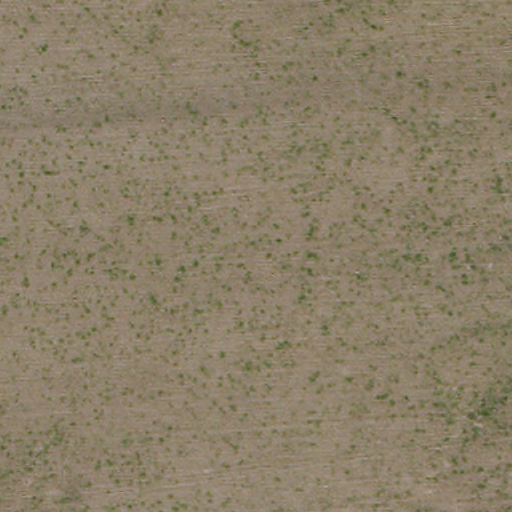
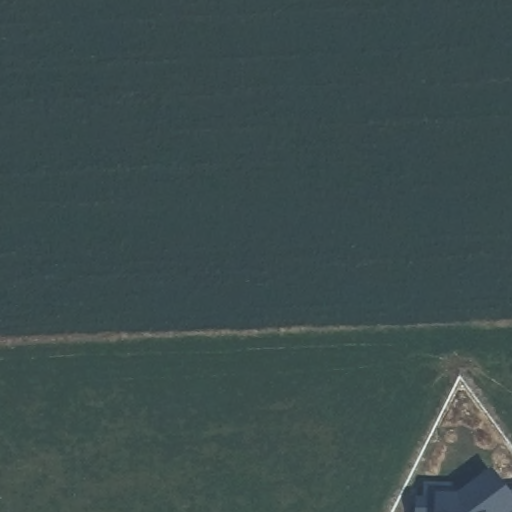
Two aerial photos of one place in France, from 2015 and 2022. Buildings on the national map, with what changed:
new [(512,493),(512,512),(418,512),(419,487),(453,488),(459,495),(492,473),(508,496),(512,493)]

